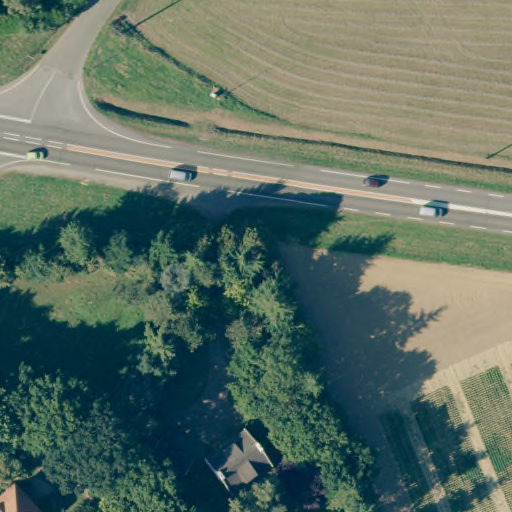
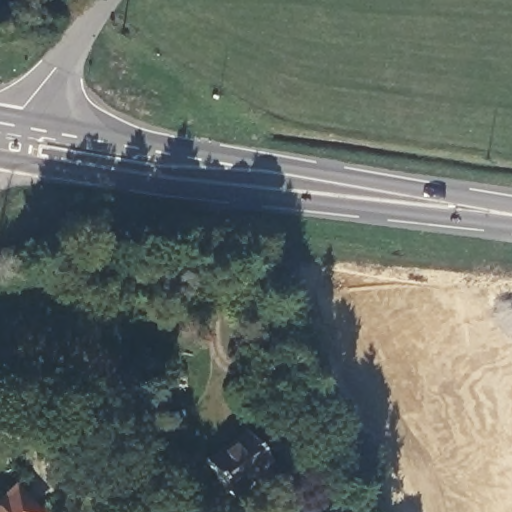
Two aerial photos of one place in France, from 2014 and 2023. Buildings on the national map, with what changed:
unchanged [(235,495),(211,461),(249,432),(274,467),(235,495)]
unchanged [(195,463),(180,491),(144,470),(160,442),(195,463)]
unchanged [(0,495),(13,483),(40,512),(0,512),(0,495)]

